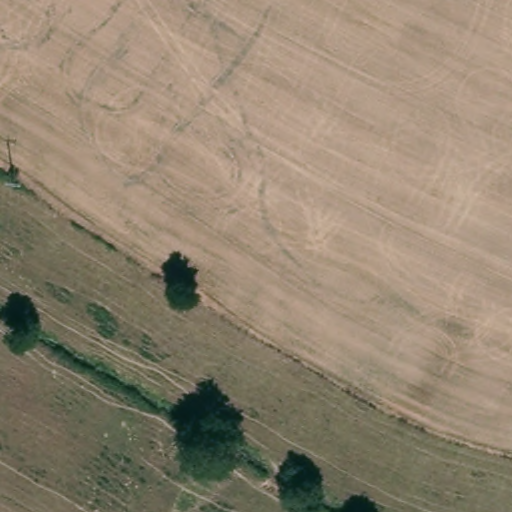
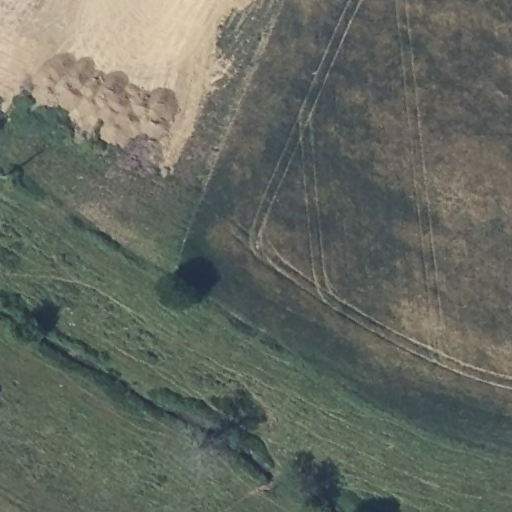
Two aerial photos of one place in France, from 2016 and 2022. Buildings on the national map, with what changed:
[]

